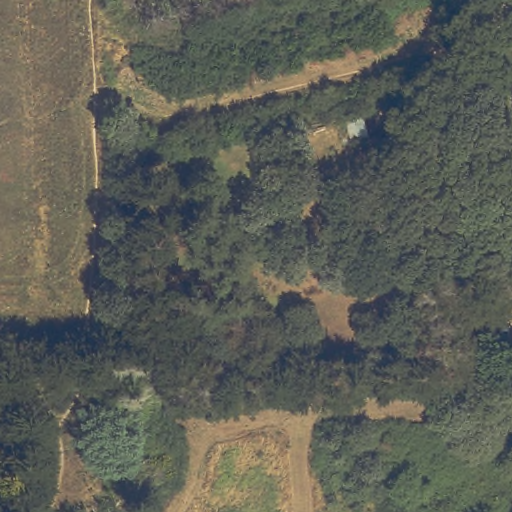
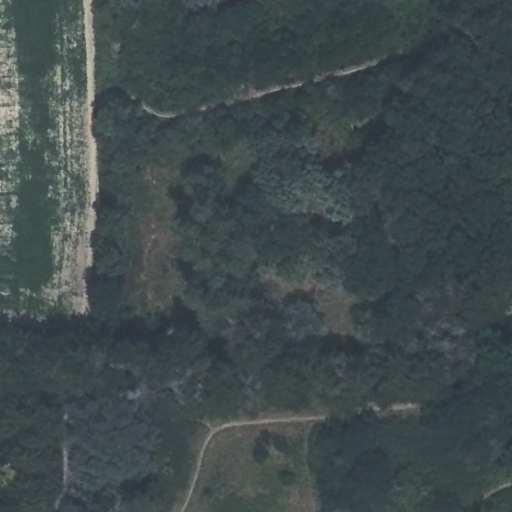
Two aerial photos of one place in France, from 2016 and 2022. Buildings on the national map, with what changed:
unchanged [(126,383),(130,402),(94,412),(89,393),(126,383)]

